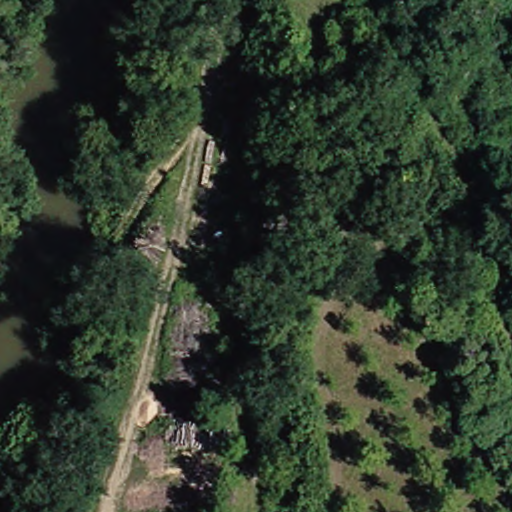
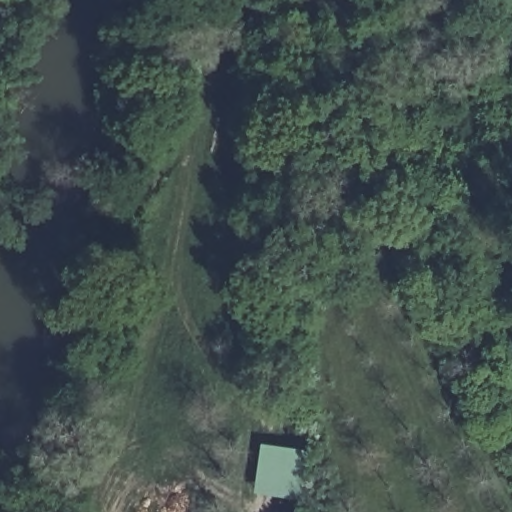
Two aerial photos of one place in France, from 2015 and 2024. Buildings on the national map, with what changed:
new [(262,443),(312,451),(303,501),(253,492),(262,443)]

